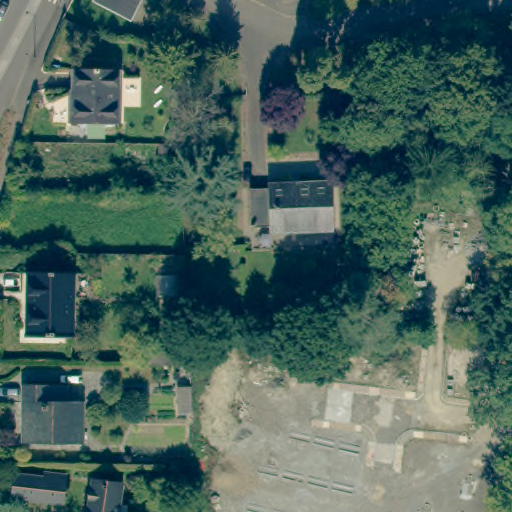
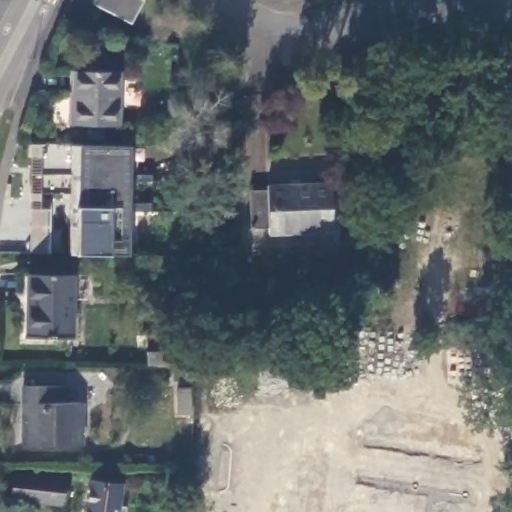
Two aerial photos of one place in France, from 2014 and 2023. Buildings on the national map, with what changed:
unchanged [(140,0),(141,0),(142,0),(130,22),(128,21),(129,20),(95,2),(94,4),(92,2),(93,0),(140,0)]
unchanged [(69,121),(69,67),(115,68),(115,122),(69,121)]
new [(129,255),(109,255),(75,255),(69,254),(71,144),(130,144),(129,255)]
unchanged [(266,189),(266,184),(328,182),(329,230),(268,232),(268,226),(250,227),(249,189),(266,189)]
demolished [(11,240),(11,208),(47,209),(47,240),(35,240),(31,240),(26,240),(11,240)]
unchanged [(27,309),(27,271),(71,271),(71,310),(27,309)]
unchanged [(72,334),(27,334),(27,309),(71,310),(72,334)]
unchanged [(20,381),(61,381),(61,397),(76,397),(76,438),(19,438),(20,381)]
unchanged [(178,412),(179,389),(190,388),(190,412),(178,412)]
unchanged [(14,467),(7,467),(8,461),(15,461),(14,467)]
unchanged [(90,469),(122,472),(117,512),(84,512),(90,469)]
unchanged [(12,495),(15,470),(45,474),(45,470),(65,471),(61,500),(12,495)]

